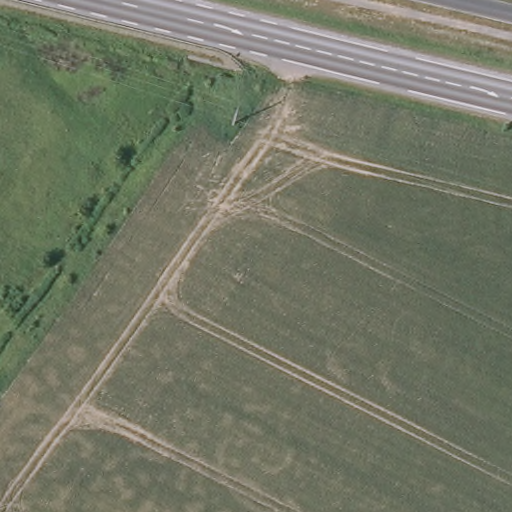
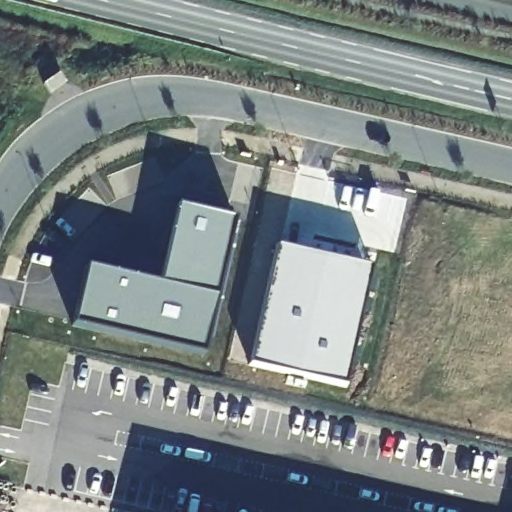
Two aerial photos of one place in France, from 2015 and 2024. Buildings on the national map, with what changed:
new [(66,84),(50,95),(44,85),(59,75),(66,84)]
new [(86,267),(161,285),(177,206),(235,219),(204,356),(73,327),(86,267)]
new [(277,246),(372,267),(345,386),(250,365),(277,246)]

